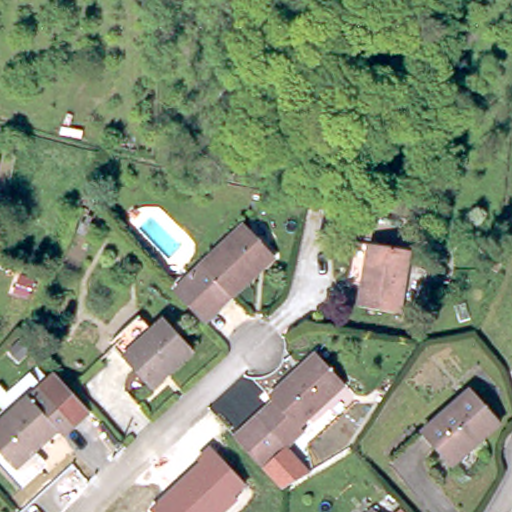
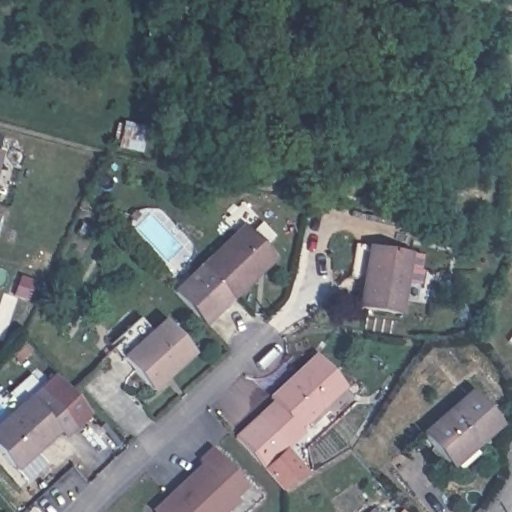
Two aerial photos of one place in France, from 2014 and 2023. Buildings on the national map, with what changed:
unchanged [(279,244),(205,310),(176,277),(250,211),(279,244)]
unchanged [(410,251),(401,313),(360,306),(364,275),(350,272),(354,241),(410,251)]
unchanged [(171,319),(199,351),(157,387),(116,341),(146,313),(157,330),(171,319)]
unchanged [(272,394),(316,350),(344,379),(299,423),(303,428),(266,464),(235,435),(276,397),(272,394)]
unchanged [(27,443),(37,456),(17,475),(1,459),(2,458),(0,456),(0,411),(46,367),(80,403),(54,428),(49,424),(27,443)]
unchanged [(445,456),(421,430),(467,386),(497,417),(470,443),(450,462),(445,456)]
unchanged [(249,487),(237,497),(240,500),(226,512),(152,512),(150,510),(201,462),(197,458),(210,447),(249,487)]
unchanged [(369,505),(375,512),(360,512),(369,505)]

